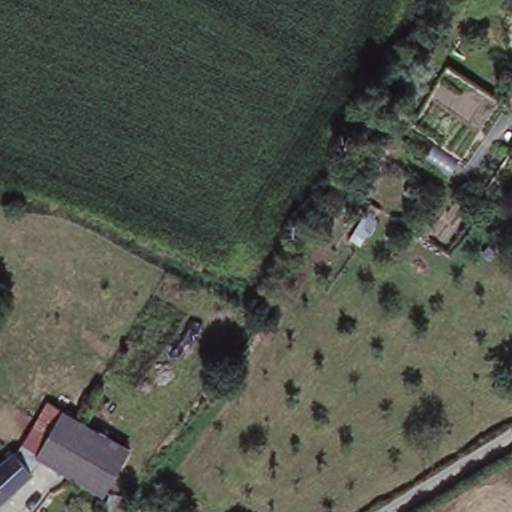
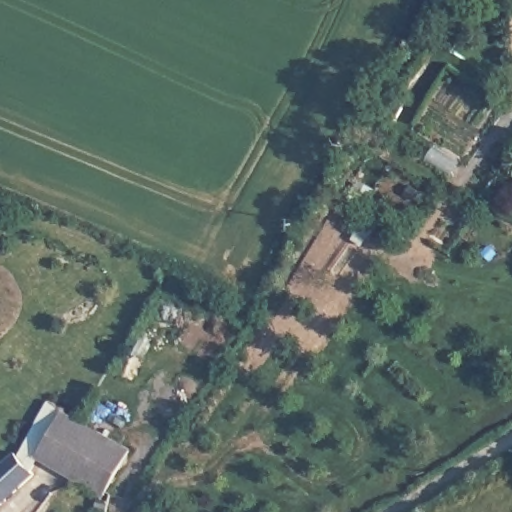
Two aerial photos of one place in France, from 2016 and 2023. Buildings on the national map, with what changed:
unchanged [(51,403),(138,448),(112,498),(44,465),(28,455),(51,403)]
unchanged [(19,463),(28,455),(44,465),(33,477),(38,483),(11,505),(0,492),(6,482),(6,476),(0,468),(0,465),(11,455),(19,463)]
unchanged [(6,482),(0,492),(0,468),(6,476),(6,482)]
unchanged [(3,512),(0,512),(0,492),(11,505),(3,512)]

